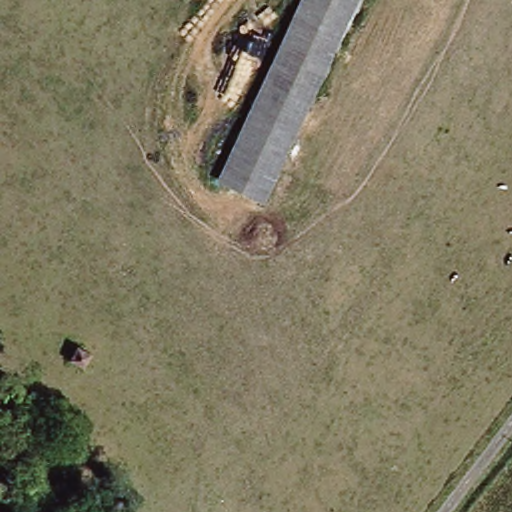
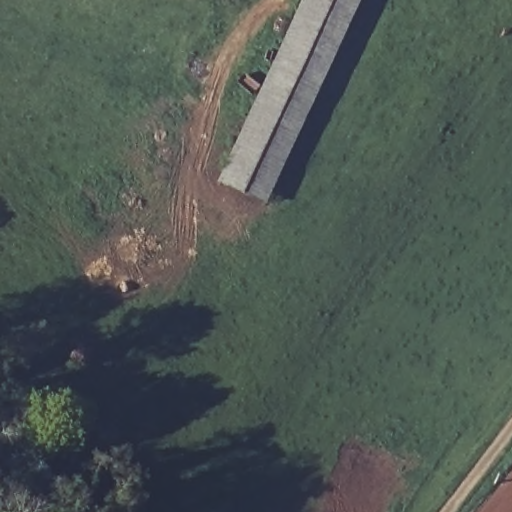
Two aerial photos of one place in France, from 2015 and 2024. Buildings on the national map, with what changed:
unchanged [(305,0),(361,0),(310,104),(265,82),(305,0)]
unchanged [(265,82),(310,104),(261,203),(216,182),(265,82)]
unchanged [(81,344),(75,357),(62,349),(69,337),(81,344)]

